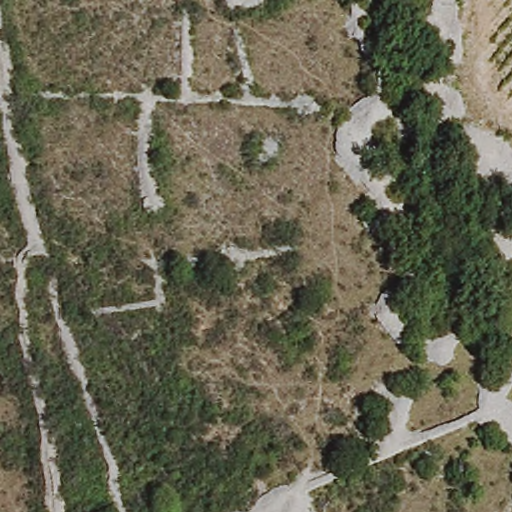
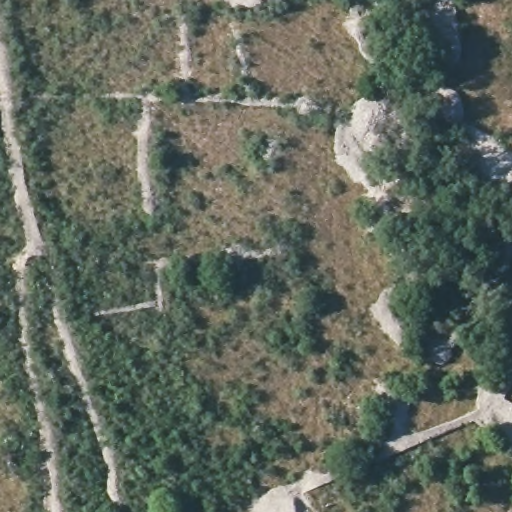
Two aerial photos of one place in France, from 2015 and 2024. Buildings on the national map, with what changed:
[]

